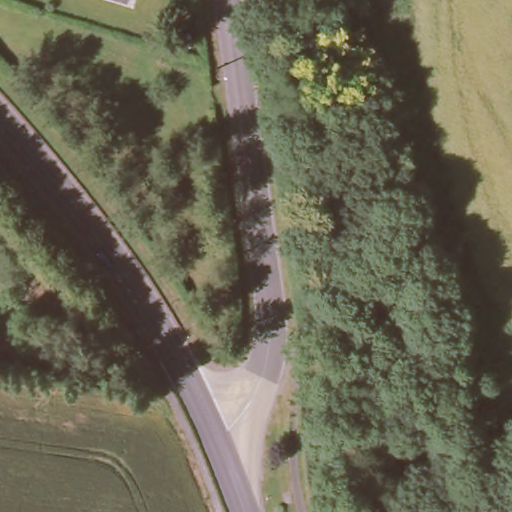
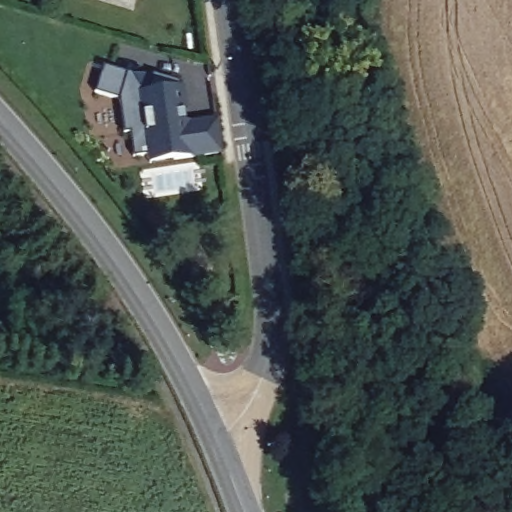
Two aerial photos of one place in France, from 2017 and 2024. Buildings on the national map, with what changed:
new [(148,163),(147,155),(131,157),(128,133),(122,134),(118,100),(93,92),(101,65),(131,74),(138,88),(146,90),(151,74),(178,82),(183,124),(215,120),(219,154),(187,158),(148,163)]

